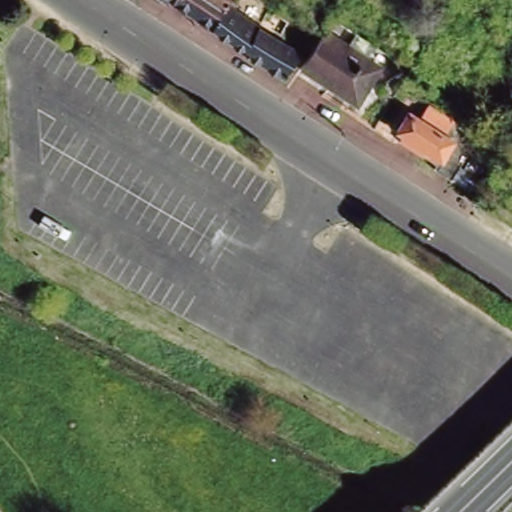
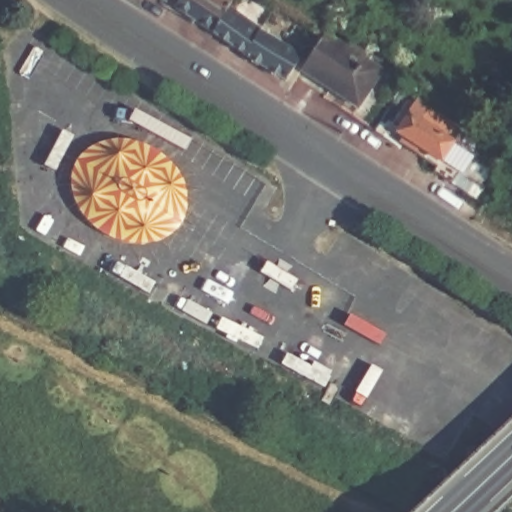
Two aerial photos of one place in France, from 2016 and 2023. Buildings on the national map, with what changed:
unchanged [(165,0),(170,0),(168,2),(165,0)]
unchanged [(231,4),(217,33),(178,8),(182,0),(232,0),(231,1),(231,4)]
unchanged [(306,52),(289,79),(217,33),(231,4),(306,52)]
unchanged [(329,30),(386,66),(361,105),(304,69),(329,30)]
unchanged [(454,135),(451,139),(468,150),(454,170),(439,160),(441,155),(395,125),(409,105),(454,135)]

